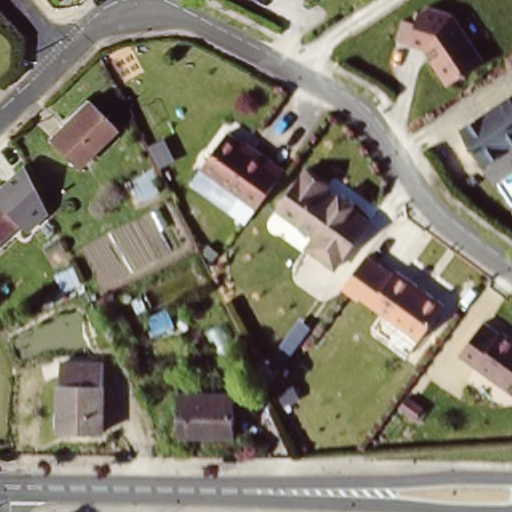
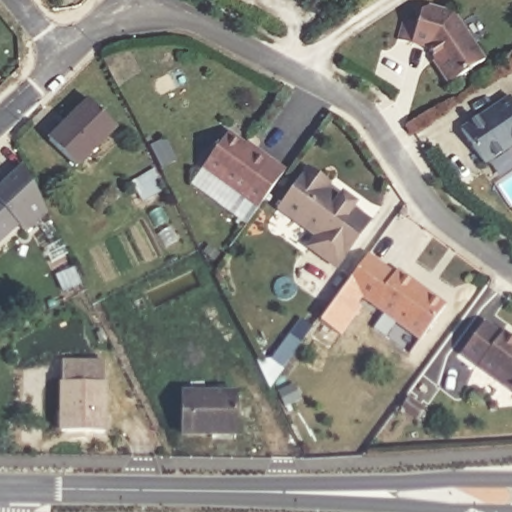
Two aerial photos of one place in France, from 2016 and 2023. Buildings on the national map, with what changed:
unchanged [(446,85),(427,54),(411,50),(418,12),(452,16),(478,60),(446,85)]
unchanged [(112,130),(67,170),(42,140),(87,101),(112,130)]
unchanged [(457,132),(500,102),(511,114),(512,113),(512,147),(483,167),(457,132)]
unchanged [(257,215),(200,174),(225,134),(285,174),(257,215)]
unchanged [(21,162),(47,210),(28,231),(17,219),(9,228),(0,221),(0,215),(9,204),(0,197),(0,184),(21,162)]
unchanged [(332,274),(305,257),(313,243),(275,217),(301,175),(371,221),(332,274)]
unchanged [(9,204),(0,215),(0,197),(9,204)]
unchanged [(9,228),(0,239),(0,221),(9,228)]
unchanged [(413,343),(341,296),(366,260),(439,309),(413,343)]
unchanged [(478,324),(512,344),(512,398),(452,359),(478,324)]
unchanged [(60,419),(62,373),(108,375),(107,420),(60,419)]
unchanged [(235,388),(235,434),(180,433),(181,387),(235,388)]

